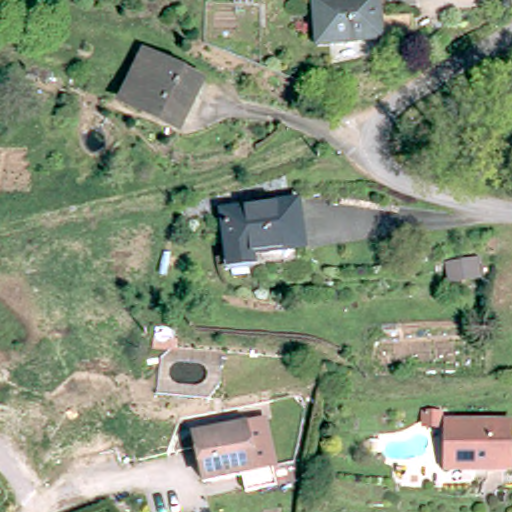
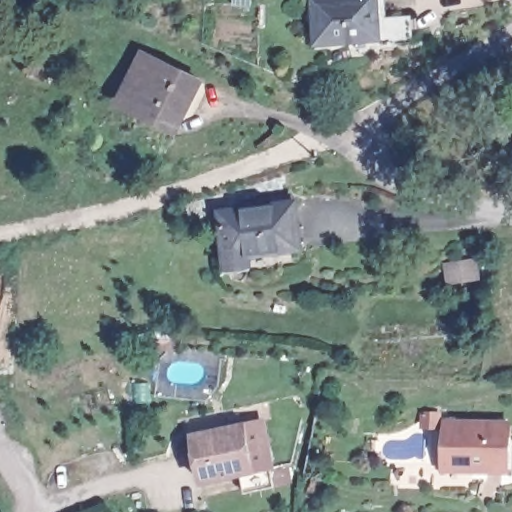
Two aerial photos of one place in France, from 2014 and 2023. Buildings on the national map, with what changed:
unchanged [(405,8),(406,36),(310,43),(305,0),(366,0),(368,12),(405,8)]
unchanged [(180,115),(147,102),(145,108),(125,99),(149,54),(201,76),(180,115)]
unchanged [(297,204),(301,245),(251,249),(252,261),(228,263),(222,209),(297,204)]
unchanged [(476,279),(452,276),(455,259),(480,262),(476,279)]
unchanged [(207,427),(248,419),(267,418),(276,467),(255,470),(258,484),(228,489),(225,471),(186,478),(178,436),(208,432),(207,427)]
unchanged [(502,469),(465,467),(466,461),(441,459),(444,419),(505,423),(502,469)]

